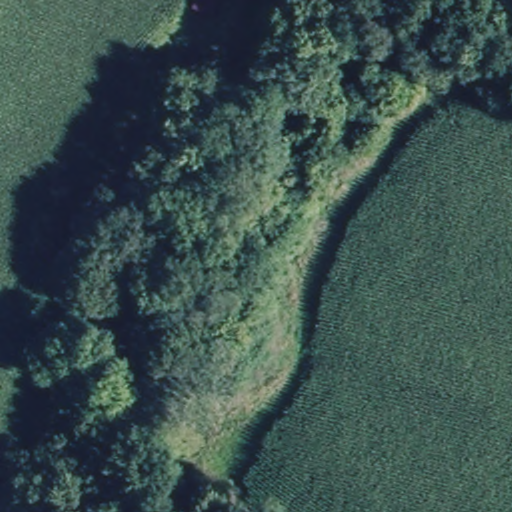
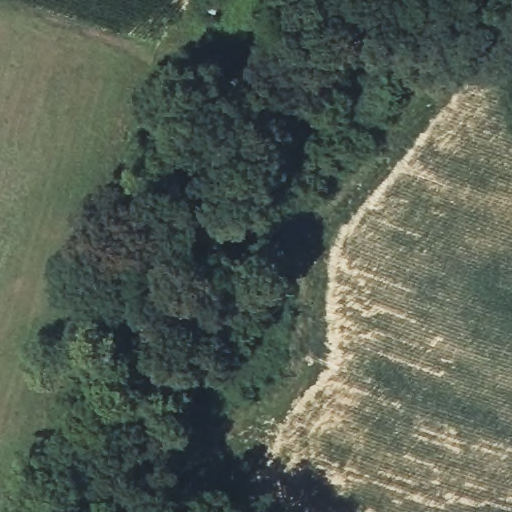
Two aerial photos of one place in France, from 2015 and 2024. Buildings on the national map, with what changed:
unchanged [(195,0),(222,0),(218,11),(193,6),(195,0)]

